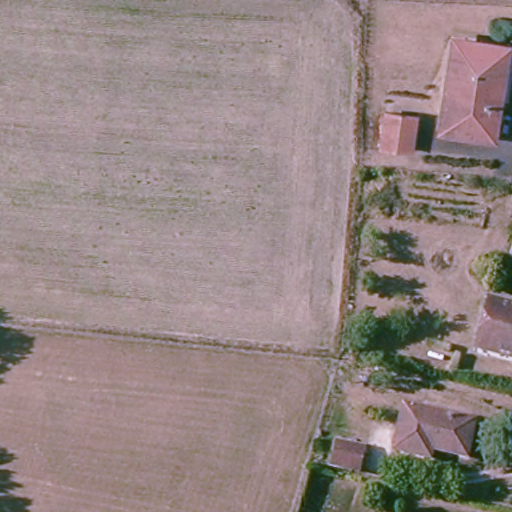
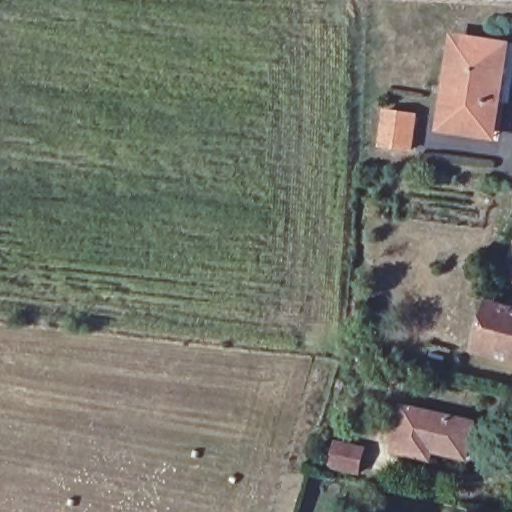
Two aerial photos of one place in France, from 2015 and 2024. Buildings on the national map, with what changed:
unchanged [(512,58),(502,99),(492,96),(484,130),(442,120),(462,41),(482,46),(485,35),(512,42),(512,58)]
unchanged [(423,113),(416,144),(383,136),(390,105),(423,113)]
unchanged [(512,255),(512,281),(506,279),(512,255)]
unchanged [(490,298),(512,305),(512,358),(477,347),(490,298)]
unchanged [(478,416),(471,451),(435,443),(433,455),(397,448),(406,402),(478,416)]
unchanged [(368,447),(364,462),(334,455),(338,440),(368,447)]

